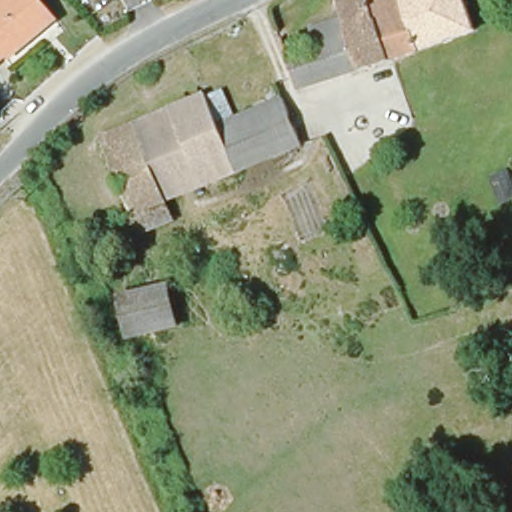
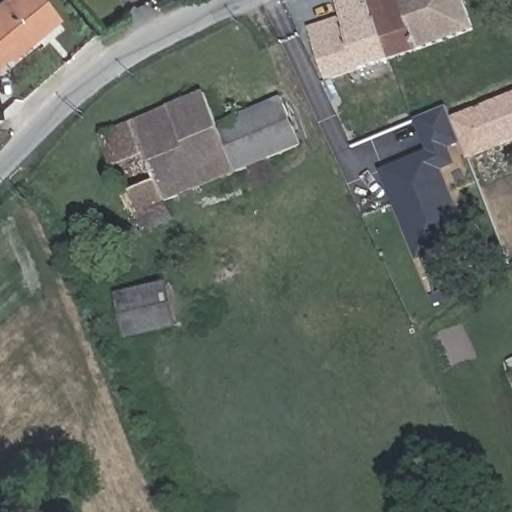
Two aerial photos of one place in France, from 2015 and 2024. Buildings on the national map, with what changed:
unchanged [(51,11),(57,18),(41,31),(0,65),(0,6),(8,0),(42,0),(51,11)]
unchanged [(351,0),(365,0),(391,62),(305,92),(292,62),(323,51),(317,31),(351,18),(345,3),(351,0)]
unchanged [(365,0),(466,0),(477,32),(391,62),(365,0)]
unchanged [(210,105),(216,120),(218,123),(279,101),(298,151),(203,190),(166,111),(205,94),(210,105)]
new [(427,152),(415,121),(447,107),(452,118),(512,95),(512,144),(470,160),(462,144),(452,149),(457,165),(445,171),(471,240),(417,262),(381,171),(427,152)]
unchanged [(143,236),(135,218),(103,138),(166,111),(203,190),(166,205),(174,223),(143,236)]
demolished [(422,148),(413,150),(411,139),(398,141),(395,129),(408,126),(408,122),(427,118),(442,116),(447,130),(434,133),(420,136),(422,148)]
unchanged [(182,331),(127,342),(115,294),(170,281),(182,331)]

